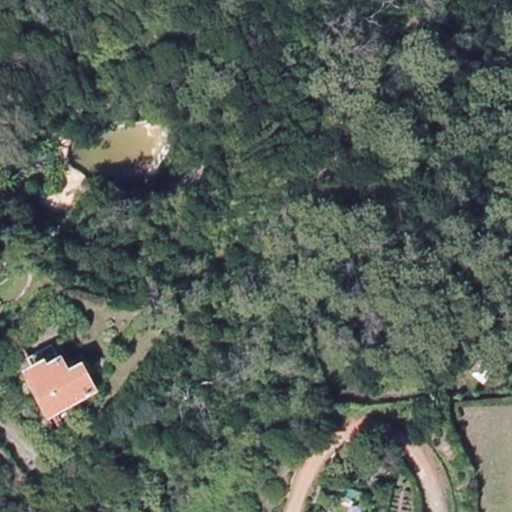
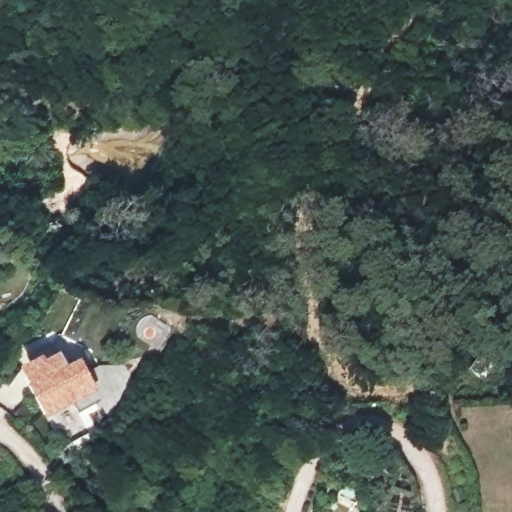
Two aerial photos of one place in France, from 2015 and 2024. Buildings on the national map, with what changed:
unchanged [(26,383),(55,367),(62,378),(77,372),(91,397),(49,421),(26,383)]

